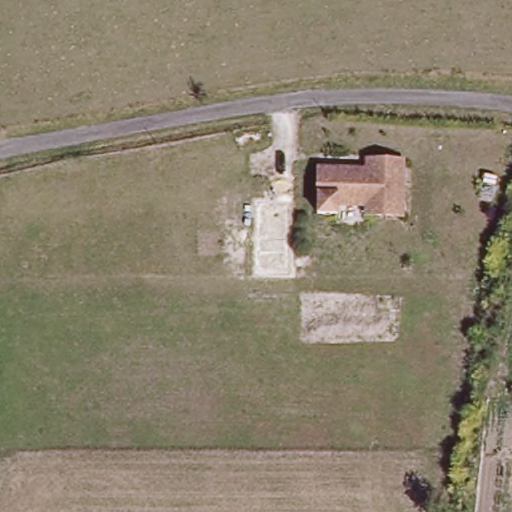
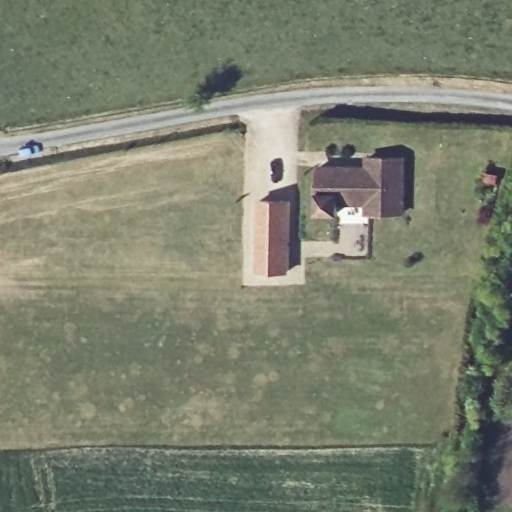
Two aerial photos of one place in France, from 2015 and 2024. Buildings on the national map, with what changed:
unchanged [(404,210),(369,210),(369,200),(340,200),(340,210),(320,210),(320,165),(369,165),(369,155),(404,155),(404,210)]
new [(293,200),(290,274),(256,273),(257,198),(293,200)]

